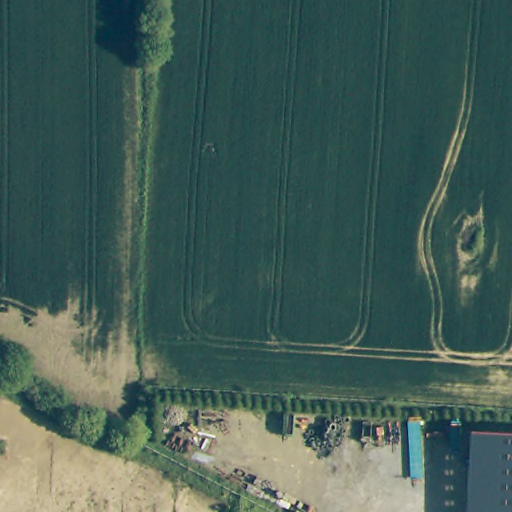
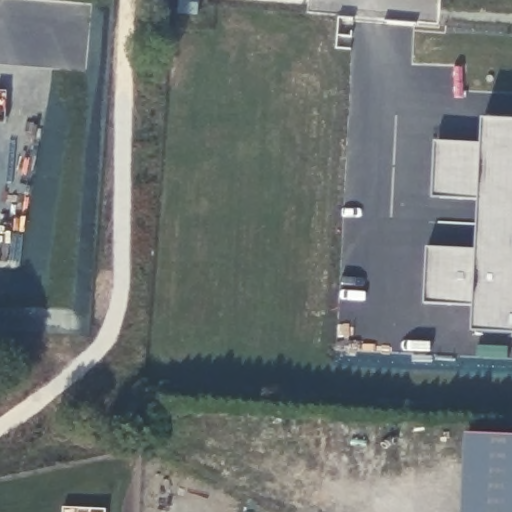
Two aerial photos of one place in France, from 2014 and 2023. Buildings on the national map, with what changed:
new [(179,1),(199,2),(198,14),(178,12),(179,1)]
new [(428,238),(478,240),(480,191),(440,189),(441,177),(434,176),(435,144),(443,144),(443,132),(483,135),(485,109),(512,110),(512,324),(473,322),(475,297),(425,295),(428,238)]
unchanged [(466,433),(512,435),(512,512),(462,512),(466,433)]

